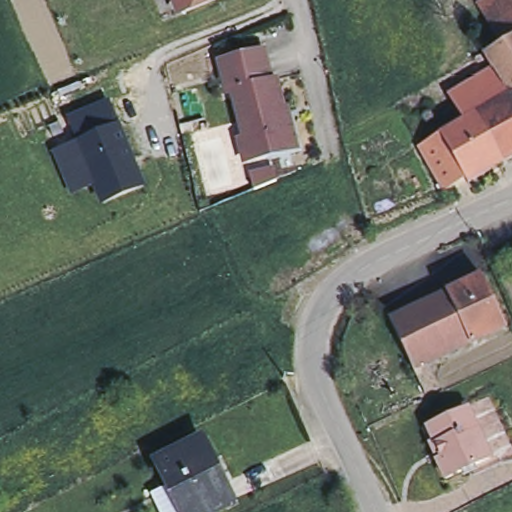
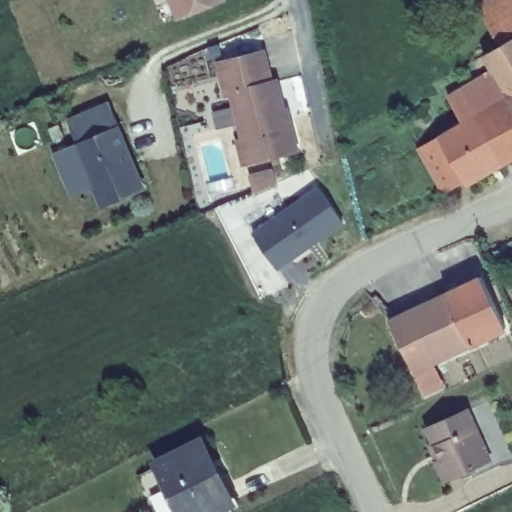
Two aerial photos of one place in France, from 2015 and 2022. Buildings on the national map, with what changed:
unchanged [(161,0),(214,0),(168,19),(161,0)]
unchanged [(512,0),(512,39),(500,46),(478,9),(493,0),(512,0)]
unchanged [(500,46),(512,39),(512,103),(493,72),(483,56),(500,46)]
unchanged [(233,94),(225,96),(221,78),(218,64),(262,53),(265,60),(270,83),(275,81),(285,123),(288,123),(294,150),(255,159),(242,161),(238,141),(244,140),(233,94)]
unchanged [(465,181),(440,137),(463,124),(448,97),(478,81),(493,72),(512,103),(512,159),(502,165),(493,171),(468,185),(465,181)]
unchanged [(110,102),(145,188),(100,206),(93,191),(72,199),(55,154),(75,146),(66,119),(110,102)]
unchanged [(445,193),(419,149),(440,137),(465,181),(445,193)]
new [(345,224),(278,271),(252,233),(317,186),(345,224)]
unchanged [(482,278),(505,329),(470,345),(445,295),(482,278)]
unchanged [(425,395),(414,372),(390,321),(445,295),(470,345),(426,366),(437,390),(425,395)]
unchanged [(467,408),(491,460),(446,481),(437,462),(443,459),(428,428),(467,408)]
unchanged [(216,512),(180,512),(164,480),(156,463),(202,441),(210,457),(225,490),(232,505),(216,512)]

